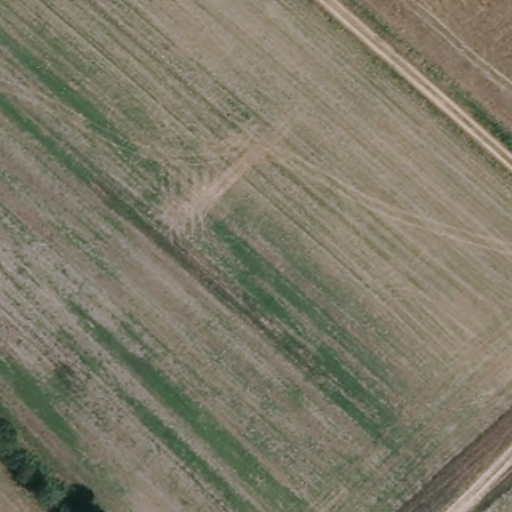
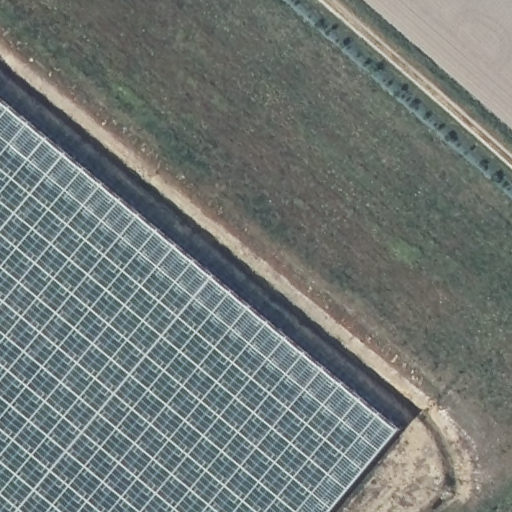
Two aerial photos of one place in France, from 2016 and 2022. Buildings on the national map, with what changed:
new [(331,512),(0,512),(0,97),(400,429),(331,512)]

